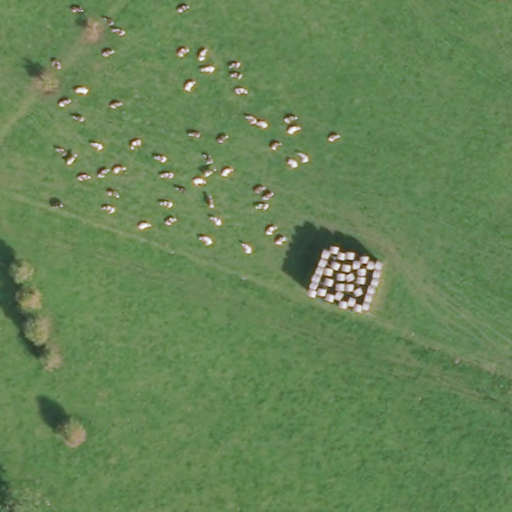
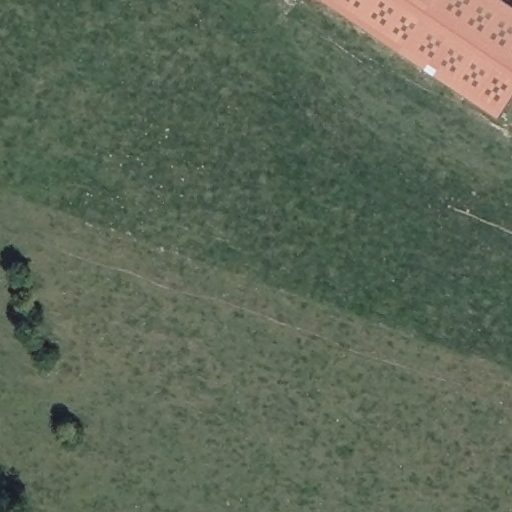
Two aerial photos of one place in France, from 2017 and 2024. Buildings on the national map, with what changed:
new [(498,65),(452,35),(432,66),(390,39),(397,28),(394,26),(407,6),(401,2),(386,24),(367,12),(362,20),(331,0),(476,0),(472,5),(512,32),(512,99),(502,113),(478,97),(498,65)]

